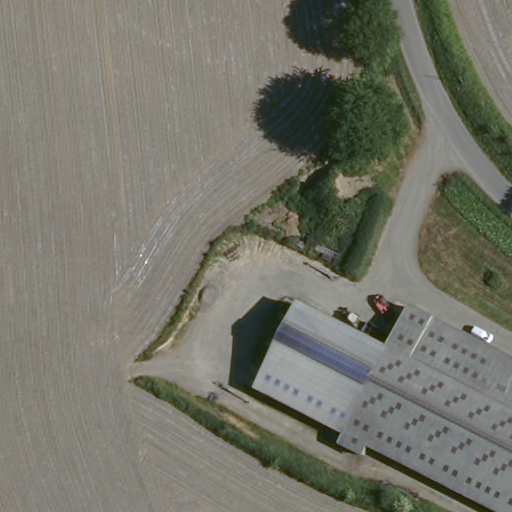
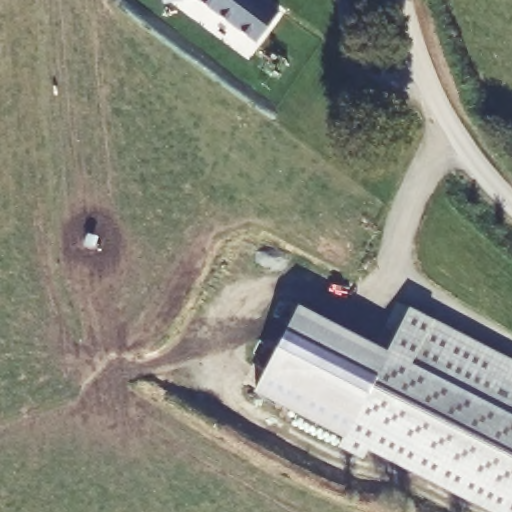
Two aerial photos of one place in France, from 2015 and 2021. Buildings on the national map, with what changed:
new [(280,10),(257,42),(201,0),(267,0),(280,10)]
unchanged [(253,389),(303,295),(389,344),(408,308),(512,364),(512,385),(510,389),(512,390),(512,512),(487,512),(364,448),(356,463),(331,449),(338,433),(253,389)]

